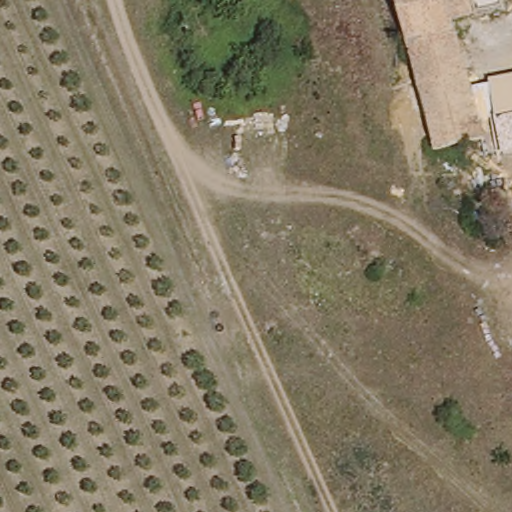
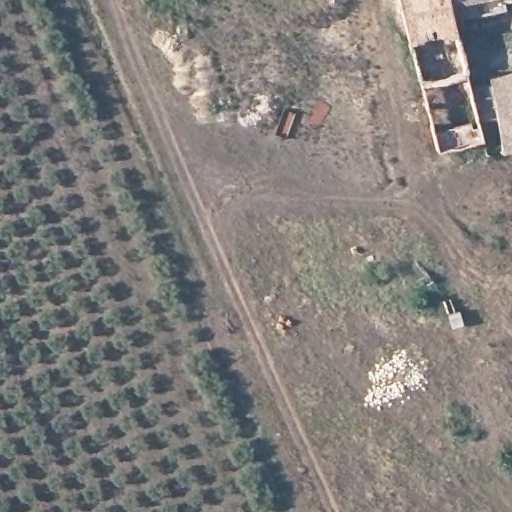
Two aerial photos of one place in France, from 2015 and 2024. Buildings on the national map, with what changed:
unchanged [(482,116),(484,138),(441,143),(403,0),(448,0),(467,73),(512,66),(512,110),(482,116)]
unchanged [(503,6),(475,10),(471,0),(502,0),(503,6)]
unchanged [(485,152),(484,138),(482,116),(512,110),(512,148),(485,152)]

